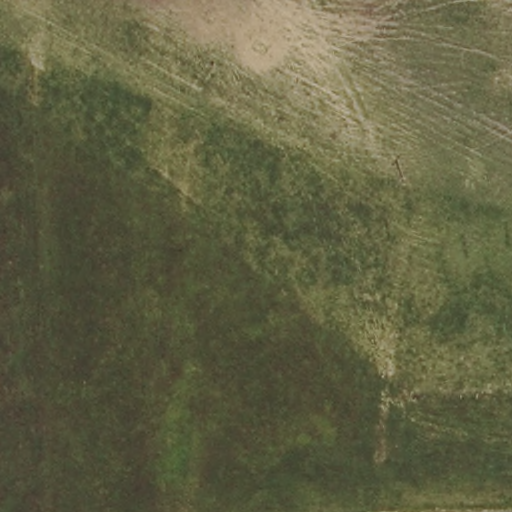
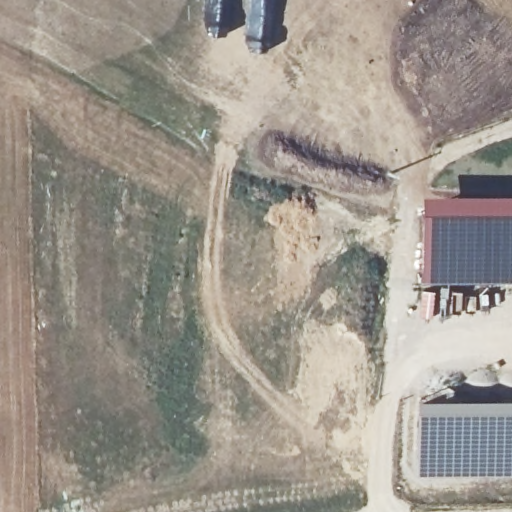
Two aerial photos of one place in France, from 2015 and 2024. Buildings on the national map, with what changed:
new [(422,190),(512,190),(512,281),(421,283),(422,190)]
new [(416,395),(512,395),(512,475),(462,474),(414,476),(416,395)]

